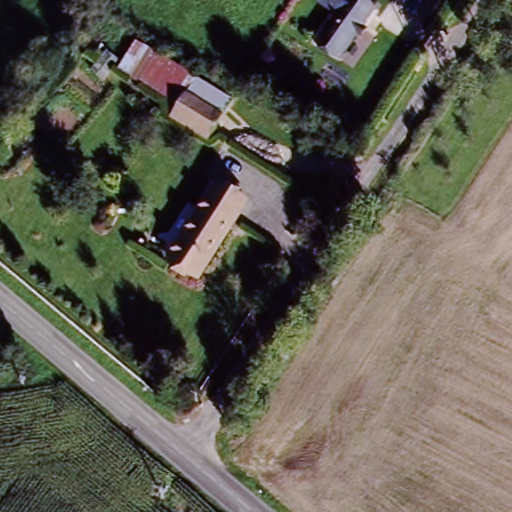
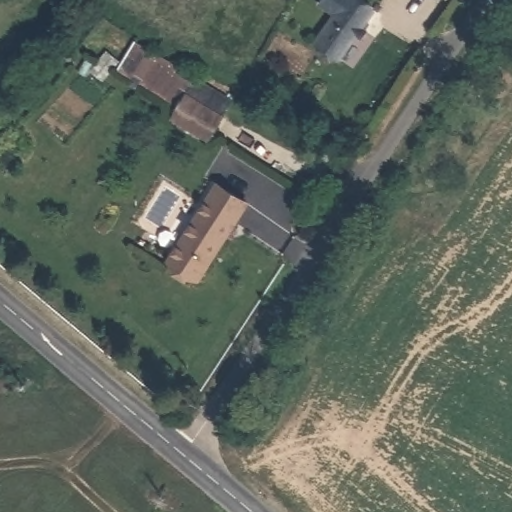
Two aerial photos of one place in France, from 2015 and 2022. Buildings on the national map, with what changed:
unchanged [(330,11),(315,0),(356,0),(372,12),(338,61),(310,40),(330,11)]
unchanged [(175,110),(116,73),(135,42),(232,100),(223,116),(207,143),(168,120),(175,110)]
unchanged [(215,191),(240,209),(191,281),(166,263),(215,191)]

